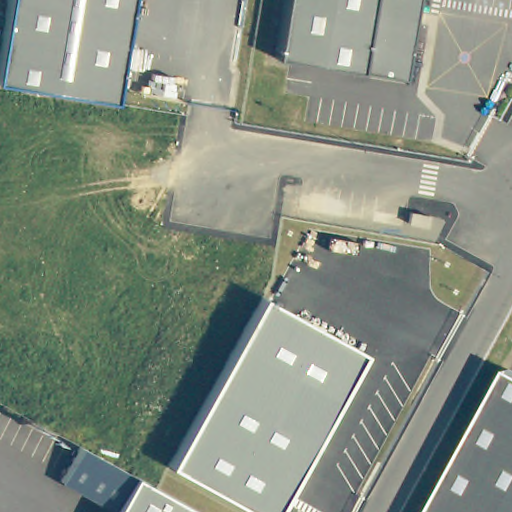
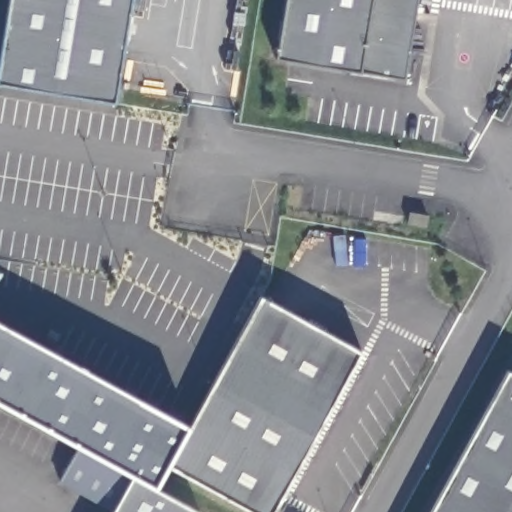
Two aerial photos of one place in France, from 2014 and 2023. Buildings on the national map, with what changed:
unchanged [(134,0),(115,111),(0,92),(0,65),(11,0),(134,0)]
unchanged [(279,0),(412,0),(397,89),(352,81),(267,66),(279,0)]
new [(410,214),(428,217),(426,228),(408,224),(410,214)]
unchanged [(275,512),(251,512),(167,466),(261,295),(362,351),(275,512)]
new [(155,486),(79,444),(0,400),(0,321),(190,426),(167,466),(155,486)]
unchanged [(508,369),(512,371),(512,512),(430,512),(508,369)]
unchanged [(200,512),(111,512),(112,511),(60,482),(79,444),(201,512),(200,512)]

